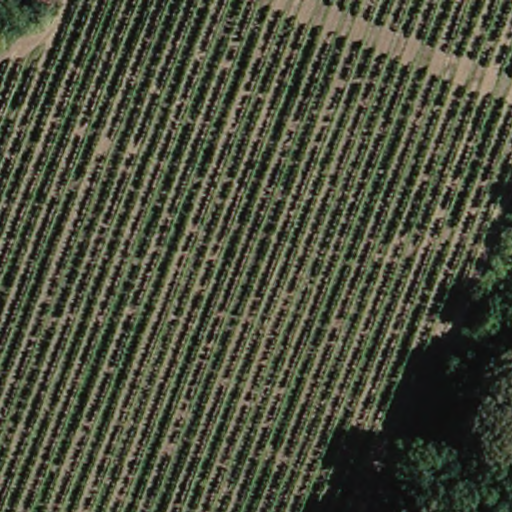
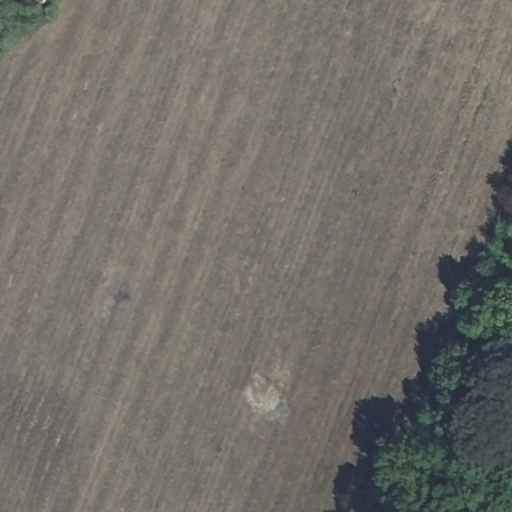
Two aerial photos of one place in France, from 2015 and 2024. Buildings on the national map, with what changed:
unchanged [(27,0),(49,0),(47,7),(27,0)]

